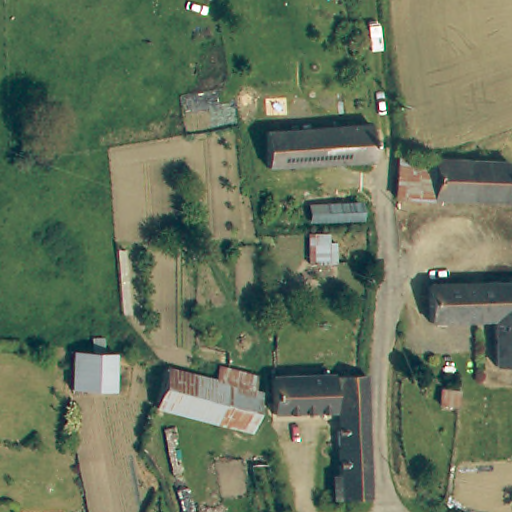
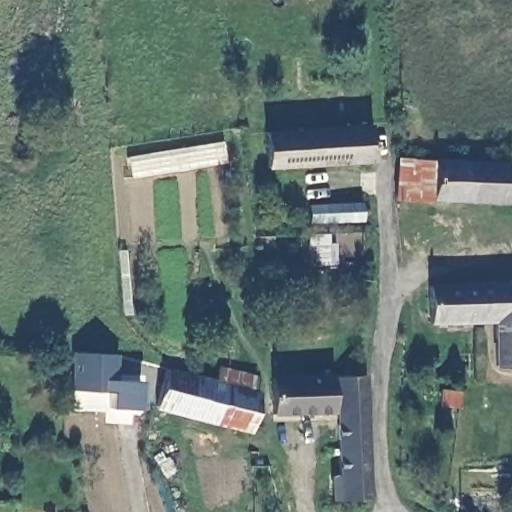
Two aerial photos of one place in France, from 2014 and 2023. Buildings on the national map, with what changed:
unchanged [(370,125),(373,160),(270,166),(267,130),(364,124),(370,125)]
unchanged [(478,152),(511,152),(511,165),(510,186),(510,202),(466,201),(467,163),(478,164),(478,152)]
unchanged [(429,200),(393,198),(393,161),(429,162),(429,200)]
unchanged [(466,201),(429,200),(429,162),(467,163),(466,201)]
unchanged [(313,213),(311,190),(365,188),(366,210),(313,213)]
unchanged [(502,325),(438,326),(433,326),(434,286),(512,287),(512,370),(502,370),(502,325)]
unchanged [(71,351),(88,351),(106,354),(114,356),(115,394),(71,391),(71,351)]
unchanged [(272,361),(328,357),(330,379),(273,386),(272,361)]
unchanged [(228,384),(217,381),(220,365),(254,374),(251,386),(258,388),(248,428),(218,420),(228,384)]
unchanged [(166,370),(166,368),(208,378),(217,381),(228,384),(218,420),(160,406),(166,370)]
unchanged [(373,507),(345,507),(337,380),(367,378),(373,507)]
unchanged [(333,413),(274,418),(273,386),(330,379),(333,413)]
unchanged [(466,396),(452,394),(452,379),(467,379),(466,396)]

